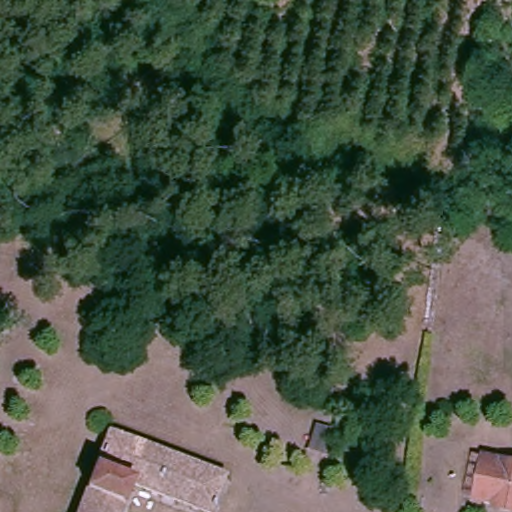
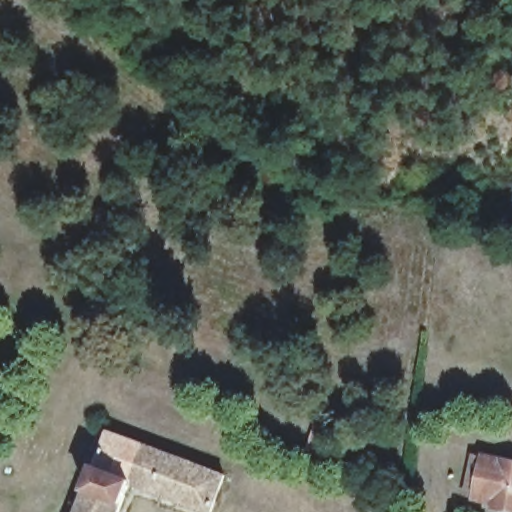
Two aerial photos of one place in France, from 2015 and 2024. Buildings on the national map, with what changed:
unchanged [(130,485),(119,512),(73,512),(103,430),(221,475),(207,512),(130,485)]
unchanged [(507,512),(489,509),(491,502),(473,498),(482,459),(512,464),(512,512),(507,512)]

